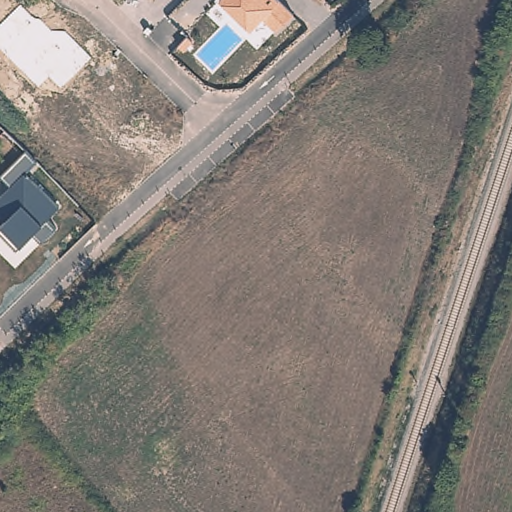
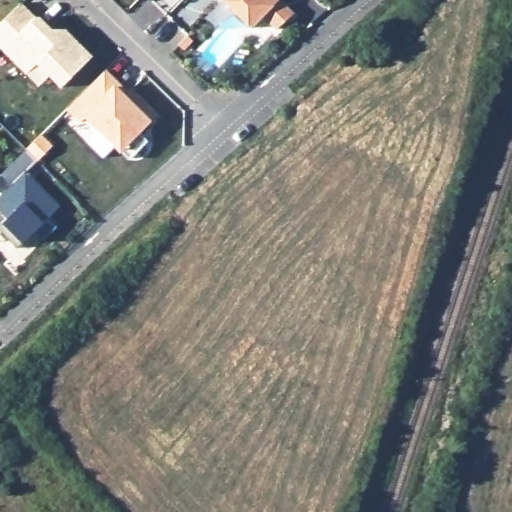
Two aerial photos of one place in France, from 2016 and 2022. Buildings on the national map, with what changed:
unchanged [(275,31),(263,19),(253,30),(223,0),(282,0),(296,14),(275,31)]
unchanged [(41,16),(56,29),(67,30),(92,59),(60,89),(49,76),(37,88),(24,76),(0,50),(0,27),(23,4),(41,16)]
new [(105,70),(114,78),(113,79),(126,91),(129,88),(158,116),(151,124),(150,121),(139,134),(147,141),(129,160),(121,152),(119,154),(84,122),(79,125),(65,111),(105,70)]
unchanged [(36,161),(27,172),(61,208),(48,221),(54,228),(41,241),(34,233),(24,244),(17,248),(0,231),(0,215),(1,214),(0,212),(0,197),(11,185),(2,177),(26,151),(36,161)]

